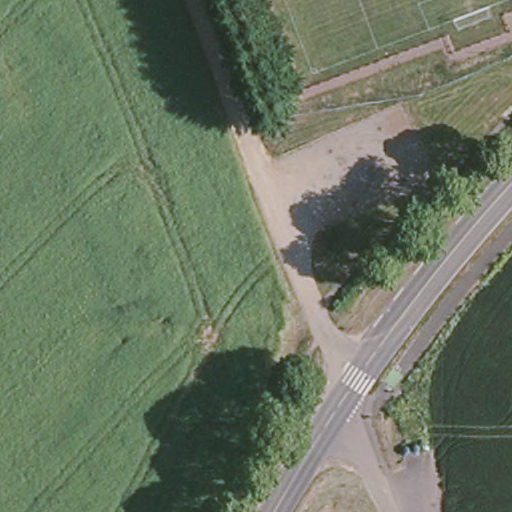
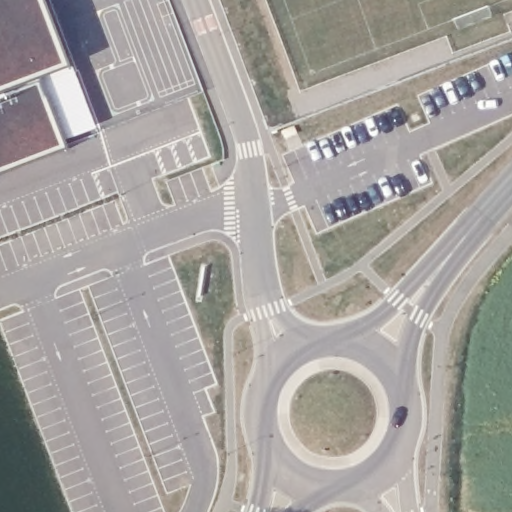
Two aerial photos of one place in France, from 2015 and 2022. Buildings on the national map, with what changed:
new [(70,64),(95,126),(62,140),(65,148),(0,173),(0,0),(40,0),(65,64),(70,64)]

